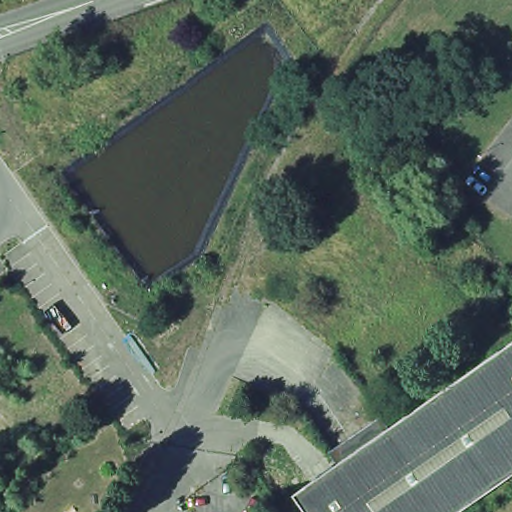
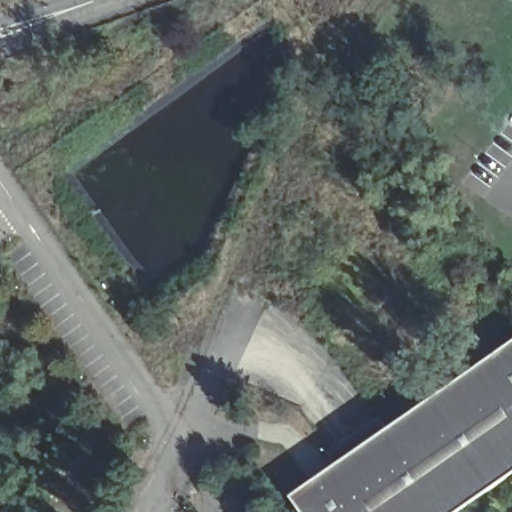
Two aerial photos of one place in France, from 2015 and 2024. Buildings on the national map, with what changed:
unchanged [(512,342),(512,474),(458,512),(305,512),(293,494),(297,491),(512,342)]

